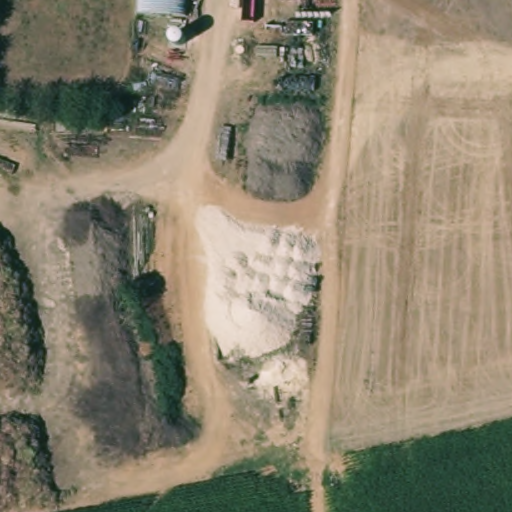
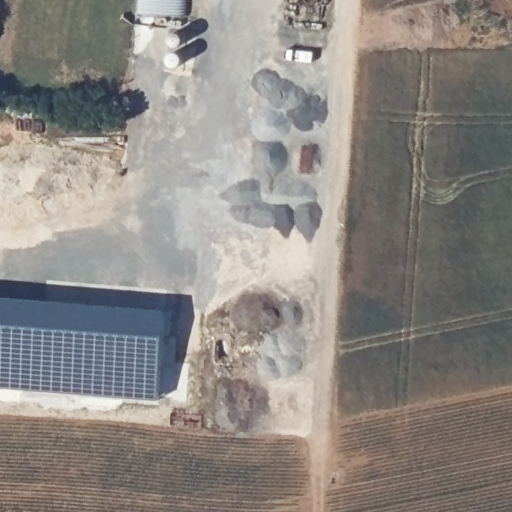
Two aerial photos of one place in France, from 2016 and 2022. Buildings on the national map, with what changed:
unchanged [(139,11),(140,0),(190,0),(189,14),(139,11)]
new [(162,400),(0,387),(0,296),(168,308),(162,400)]

